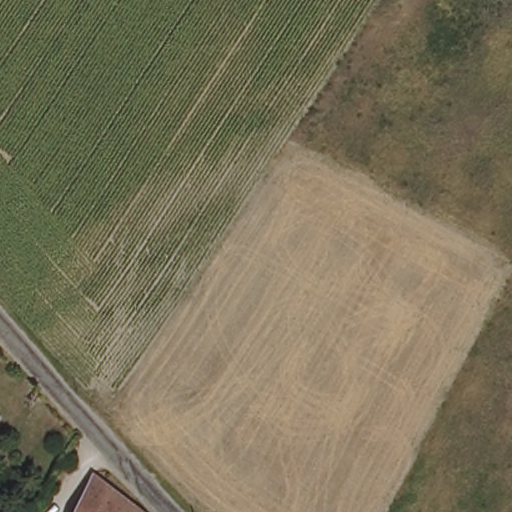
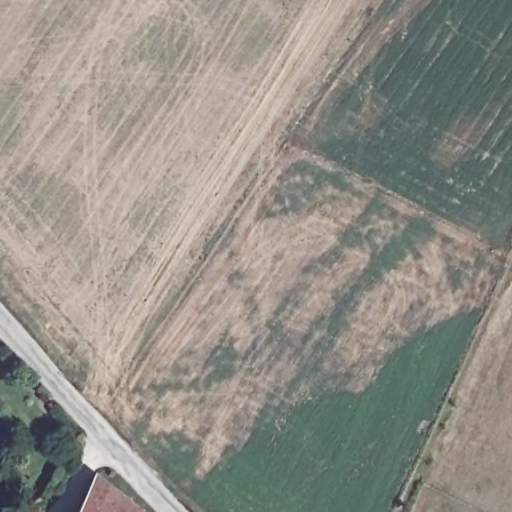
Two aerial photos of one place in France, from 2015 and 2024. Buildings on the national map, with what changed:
unchanged [(138,506),(134,512),(79,512),(98,476),(138,506)]
unchanged [(134,512),(138,506),(145,512),(134,512)]

